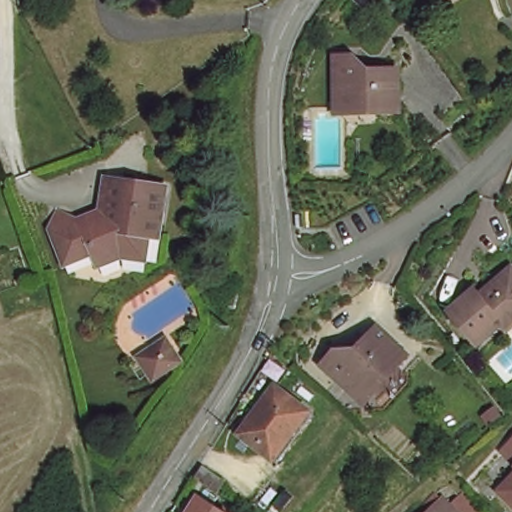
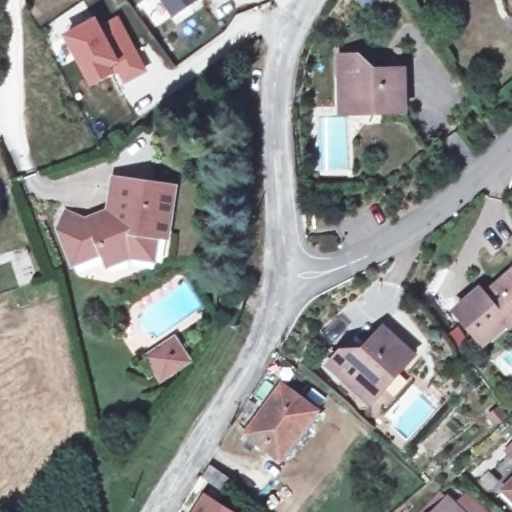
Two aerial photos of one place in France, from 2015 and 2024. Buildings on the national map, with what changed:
new [(162,0),(194,0),(172,14),(162,0)]
new [(93,22),(98,31),(115,21),(142,71),(123,81),(117,70),(90,84),(64,37),(93,22)]
unchanged [(336,87),(336,70),(334,51),(355,50),(373,64),(403,65),(403,107),(381,108),(338,110),(336,87)]
unchanged [(105,175),(165,185),(158,235),(148,233),(144,258),(120,254),(100,262),(95,248),(64,261),(52,228),(48,219),(56,204),(73,210),(76,218),(100,208),(105,175)]
unchanged [(506,320),(482,339),(454,306),(478,287),(483,294),(512,270),(512,326),(506,320)]
unchanged [(221,310),(223,296),(233,297),(231,311),(221,310)]
unchanged [(354,387),(328,366),(343,347),(364,343),(381,323),(414,349),(400,366),(371,401),(354,387)]
unchanged [(161,375),(149,358),(144,351),(172,333),(176,340),(187,356),(161,375)]
unchanged [(246,435),(283,383),(318,409),(282,459),(246,435)]
unchanged [(505,442),(512,435),(512,449),(505,442)]
unchanged [(221,473),(229,480),(219,491),(204,476),(213,466),(221,473)]
unchanged [(501,482),(512,471),(512,493),(501,482)]
unchanged [(206,492),(237,512),(194,512),(206,492)]
unchanged [(449,496),(466,512),(433,512),(449,496)]

